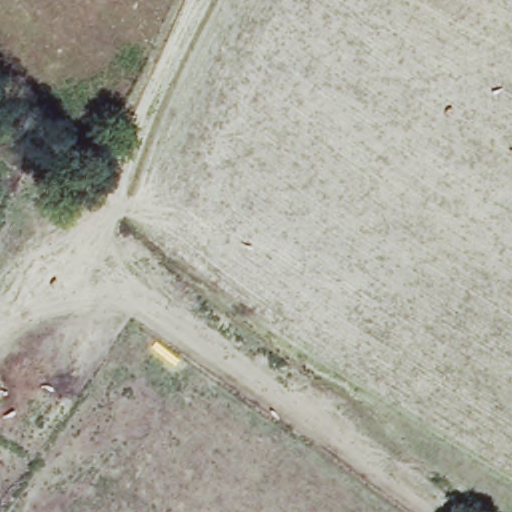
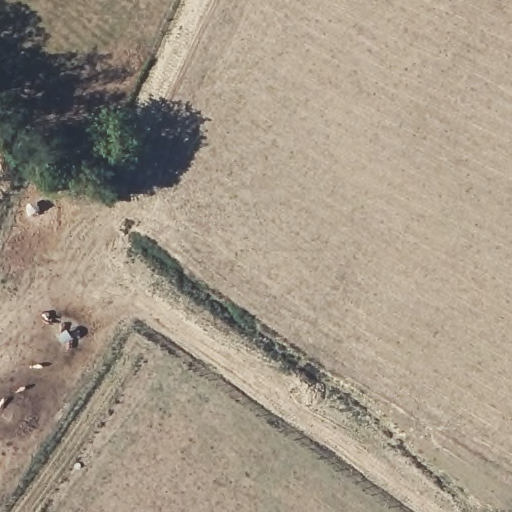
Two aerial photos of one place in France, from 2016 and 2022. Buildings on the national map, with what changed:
[]

